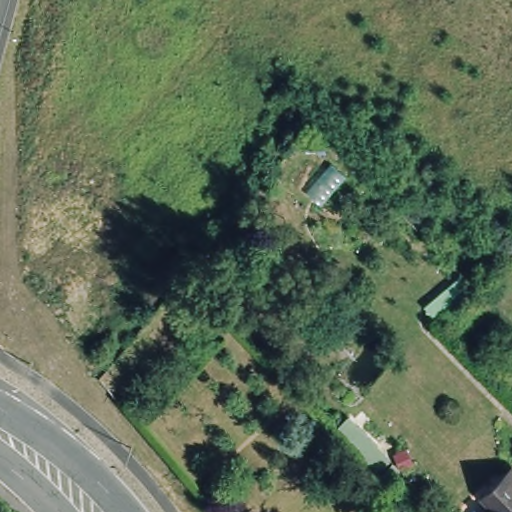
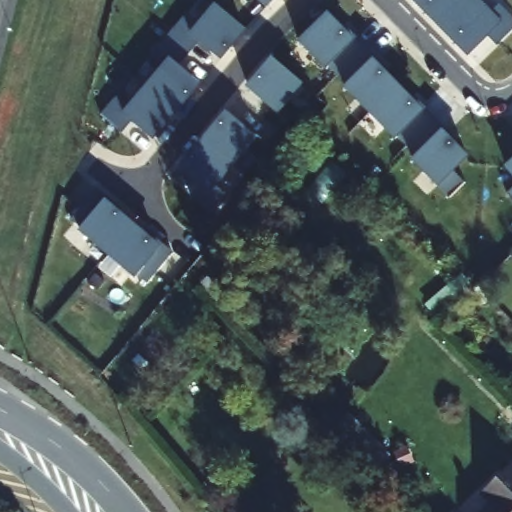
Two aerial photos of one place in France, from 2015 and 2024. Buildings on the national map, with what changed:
new [(259,0),(273,0),(266,7),(259,0)]
new [(492,11),(499,4),(512,17),(512,31),(498,45),(488,35),(469,54),(416,0),(481,0),(492,11)]
new [(153,138),(132,120),(122,132),(101,115),(117,95),(129,105),(164,64),(152,54),(185,16),(196,26),(215,4),(245,29),(226,51),(205,33),(178,65),(200,83),(153,138)]
new [(352,39),(355,37),(376,58),(373,60),(422,110),(425,107),(445,129),(443,131),(467,156),(453,170),(465,182),(450,197),(412,159),(417,155),(397,135),(395,138),(345,87),(347,84),(328,65),(325,67),(300,41),(327,13),(352,39)]
new [(302,84),(278,112),(248,87),(272,59),(302,84)]
new [(257,138),(217,185),(228,195),(212,214),(192,197),(202,184),(181,166),(227,112),(257,138)]
new [(507,167),(512,162),(512,173),(507,167)]
new [(507,192),(512,188),(512,198),(507,192)]
new [(90,234),(79,225),(104,195),(116,205),(113,208),(167,252),(169,250),(180,260),(155,289),(137,274),(135,277),(87,237),(90,234)]
unchanged [(475,494),(507,464),(512,470),(512,512),(478,512),(485,504),(475,494)]

